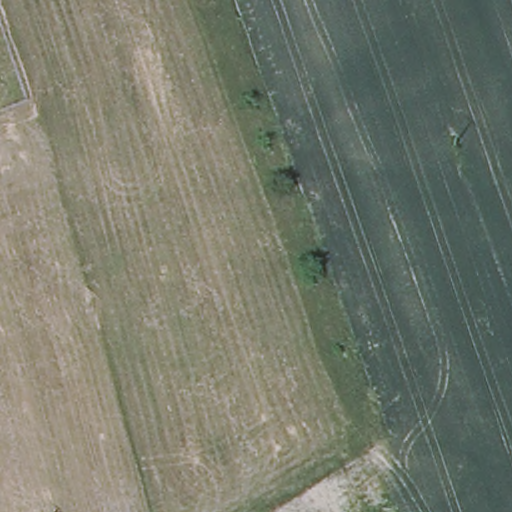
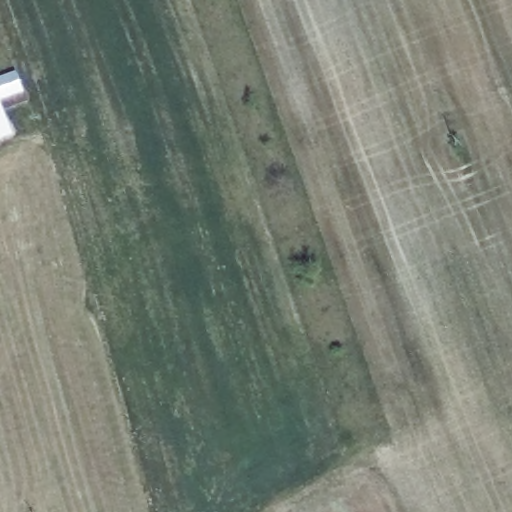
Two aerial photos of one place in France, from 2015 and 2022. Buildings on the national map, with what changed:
new [(20,73),(27,90),(0,100),(0,80),(20,73)]
new [(15,137),(0,142),(0,102),(15,137)]

